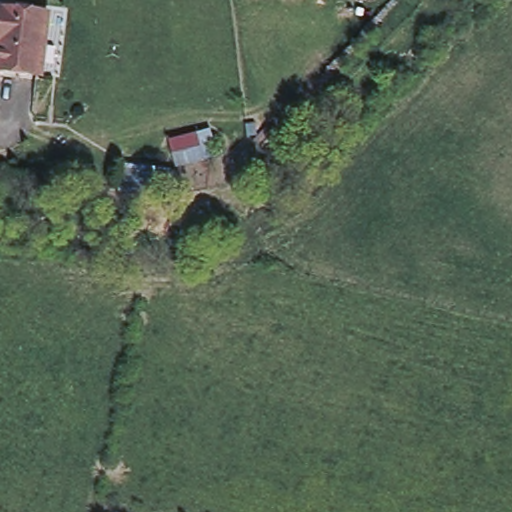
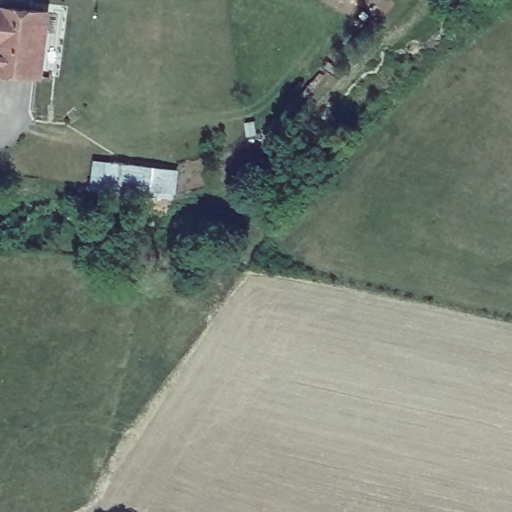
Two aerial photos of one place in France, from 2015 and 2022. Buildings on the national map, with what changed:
unchanged [(54,15),(47,77),(0,72),(0,8),(54,15)]

